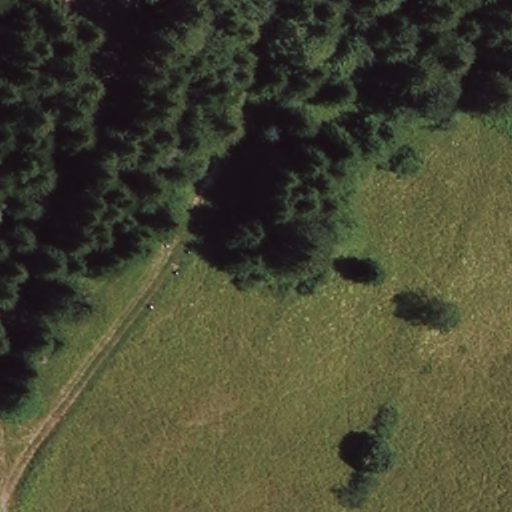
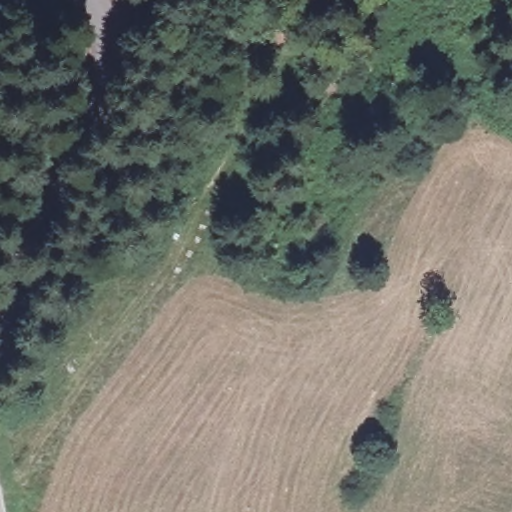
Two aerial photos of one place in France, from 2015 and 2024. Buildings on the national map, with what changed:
[]

